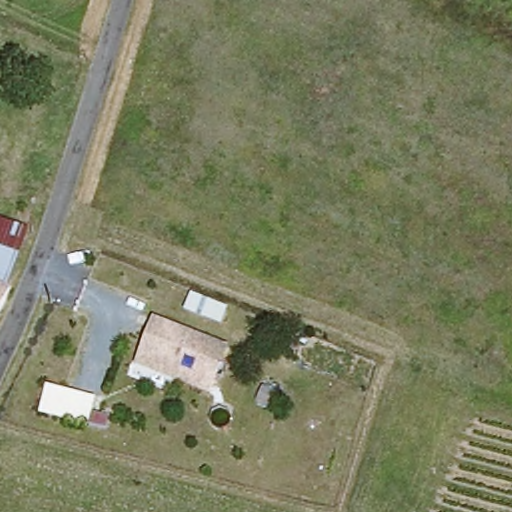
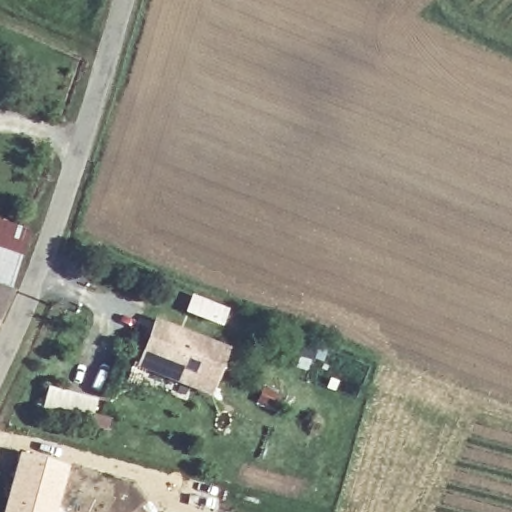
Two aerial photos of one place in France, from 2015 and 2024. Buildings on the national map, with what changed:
unchanged [(22,229),(8,272),(3,287),(11,290),(0,314),(0,222),(22,229)]
unchanged [(211,393),(138,362),(148,337),(151,332),(179,343),(181,335),(226,354),(221,365),(211,393)]
unchanged [(89,409),(82,437),(33,423),(40,396),(89,409)]
new [(17,453),(66,468),(54,512),(1,512),(17,453)]

